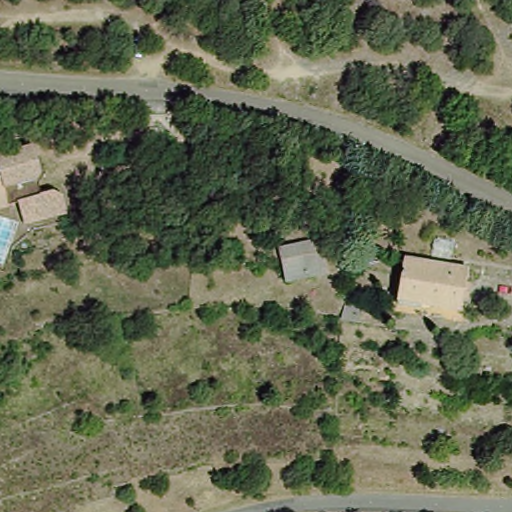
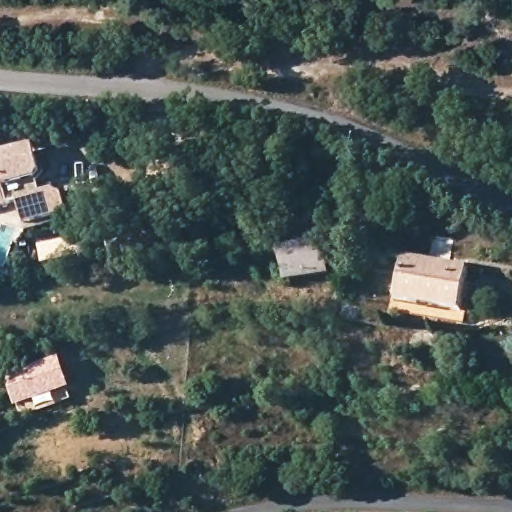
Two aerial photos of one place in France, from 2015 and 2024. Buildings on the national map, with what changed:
unchanged [(37,150),(40,187),(6,196),(10,212),(0,216),(0,158),(37,150)]
unchanged [(18,207),(60,196),(65,220),(23,232),(18,207)]
unchanged [(284,289),(279,269),(276,253),(315,242),(324,280),(284,289)]
unchanged [(394,311),(396,297),(401,258),(467,267),(461,307),(458,321),(394,311)]
new [(70,388),(15,408),(4,376),(58,356),(70,388)]

